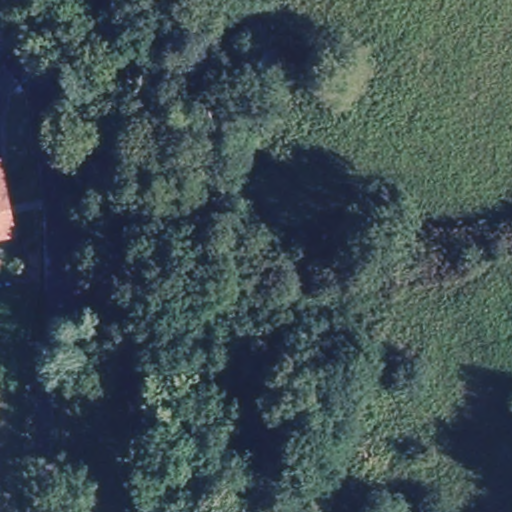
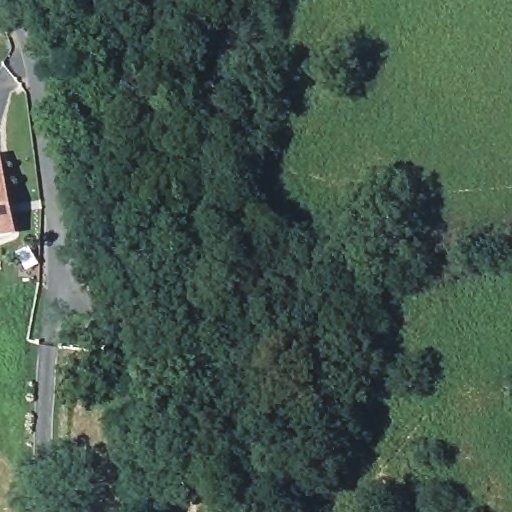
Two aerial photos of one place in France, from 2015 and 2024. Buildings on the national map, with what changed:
unchanged [(12,235),(0,237),(0,170),(5,197),(12,235)]

